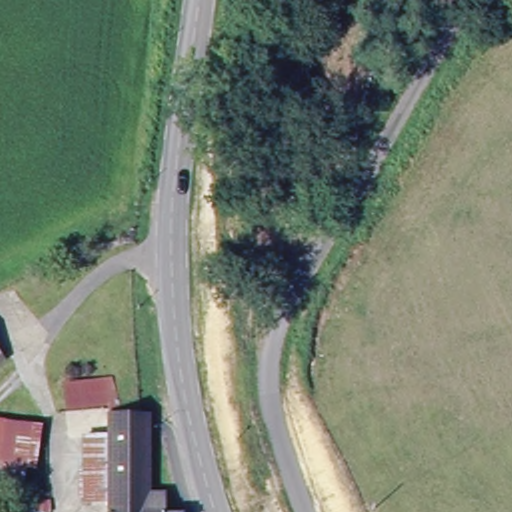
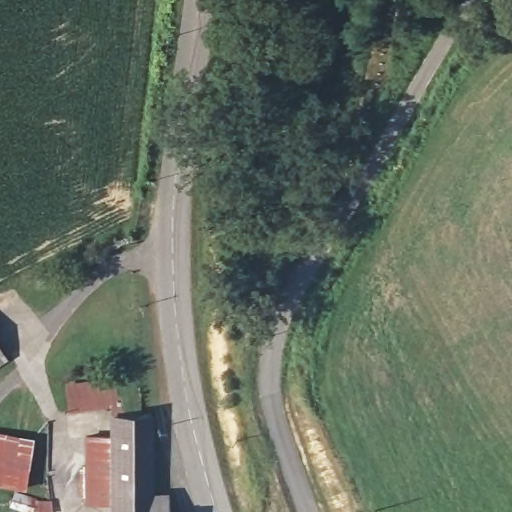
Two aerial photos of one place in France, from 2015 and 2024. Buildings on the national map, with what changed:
unchanged [(0,362),(0,355),(3,360),(0,362)]
unchanged [(114,402),(67,402),(69,381),(115,380),(114,402)]
unchanged [(139,495),(157,495),(159,512),(98,512),(97,502),(71,503),(67,438),(93,438),(92,416),(136,415),(139,495)]
unchanged [(0,480),(0,420),(41,425),(25,486),(0,480)]

